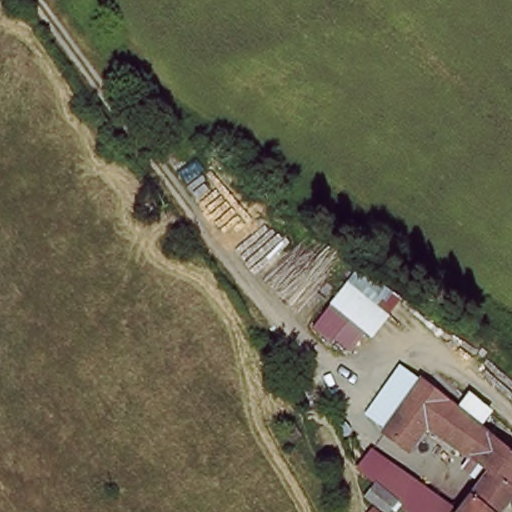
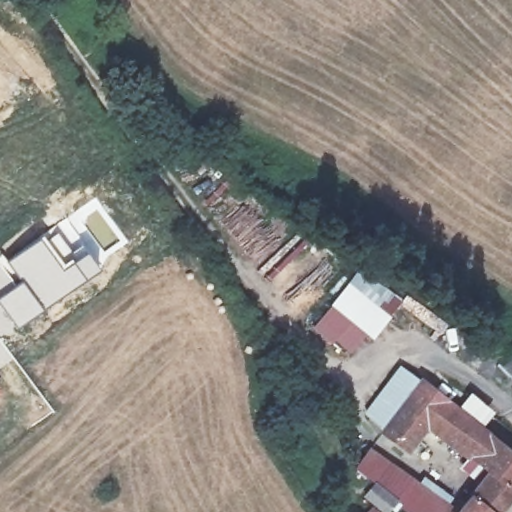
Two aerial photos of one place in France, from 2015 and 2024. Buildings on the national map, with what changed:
new [(56,225),(74,255),(83,248),(98,269),(42,310),(21,280),(7,260),(56,225)]
new [(21,280),(42,310),(16,328),(0,306),(0,296),(21,280)]
unchanged [(352,328),(338,348),(318,331),(335,310),(354,287),(394,323),(375,344),(352,328)]
unchanged [(402,370),(426,387),(389,433),(366,420),(402,370)]
unchanged [(468,457),(432,430),(414,452),(389,433),(426,387),(512,454),(512,458),(505,458),(468,457)]
unchanged [(405,512),(359,473),(372,453),(441,512),(405,512)]
unchanged [(468,512),(492,478),(468,457),(505,458),(512,458),(512,505),(507,512),(468,512)]

